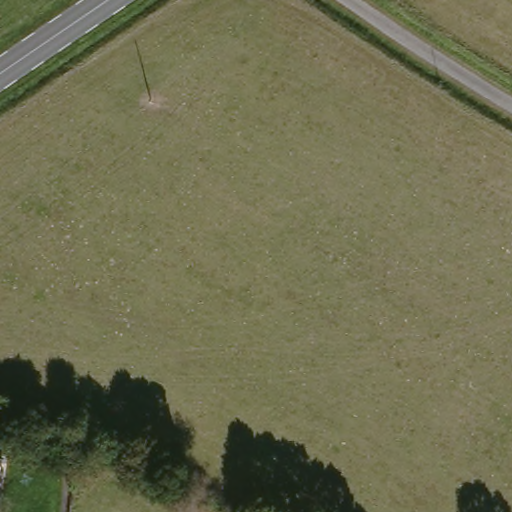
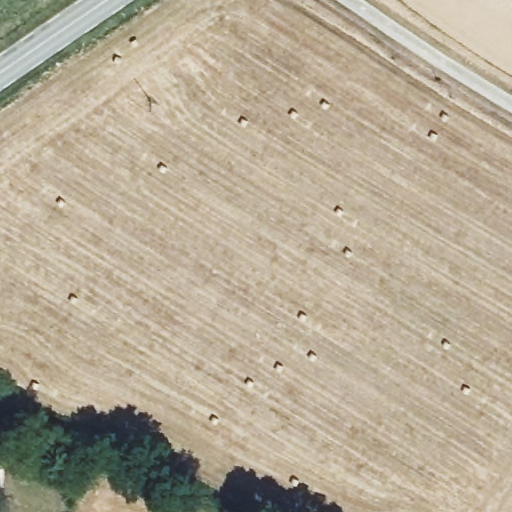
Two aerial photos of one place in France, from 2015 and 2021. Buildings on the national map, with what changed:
unchanged [(1,449),(0,465),(0,449),(1,449)]

